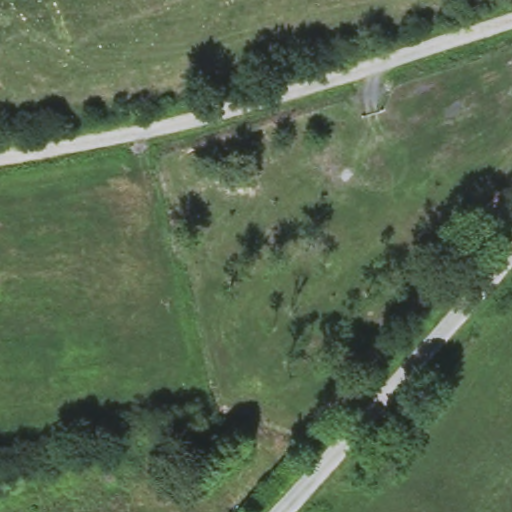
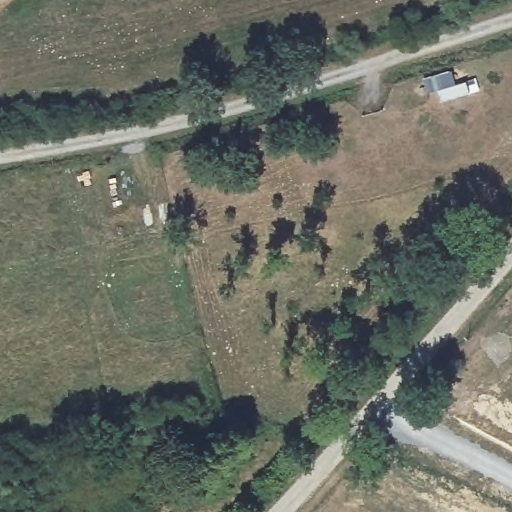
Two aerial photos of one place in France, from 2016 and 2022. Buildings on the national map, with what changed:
unchanged [(210,450),(189,468),(173,450),(193,429),(210,450)]

